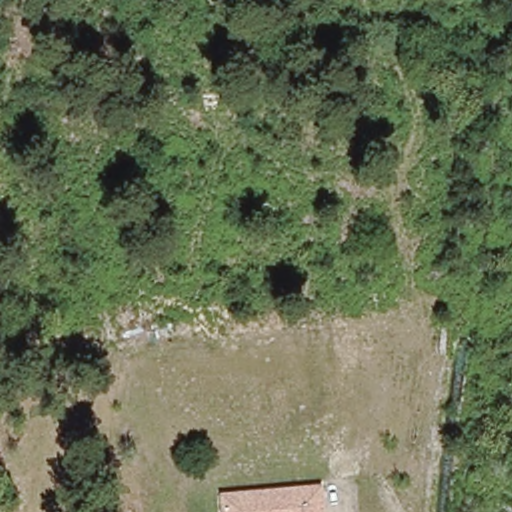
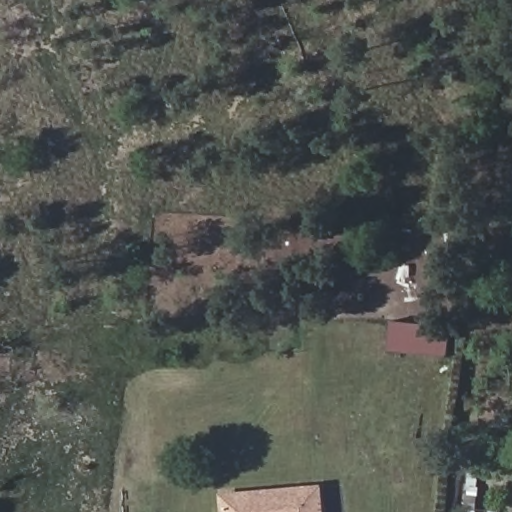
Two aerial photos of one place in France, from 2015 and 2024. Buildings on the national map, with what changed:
new [(451,327),(449,356),(388,350),(391,320),(451,327)]
unchanged [(224,495),(298,490),(320,489),(321,503),(321,512),(225,512),(224,495)]

